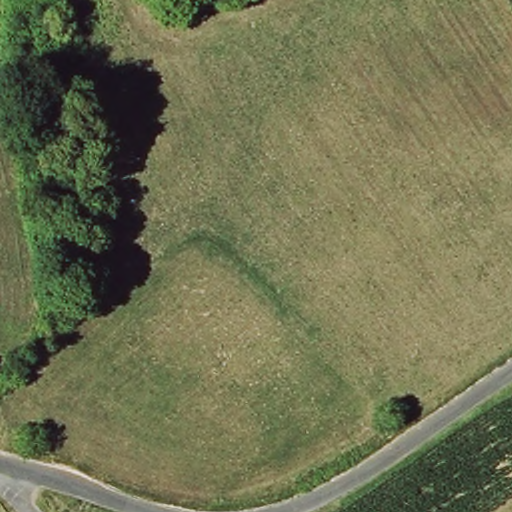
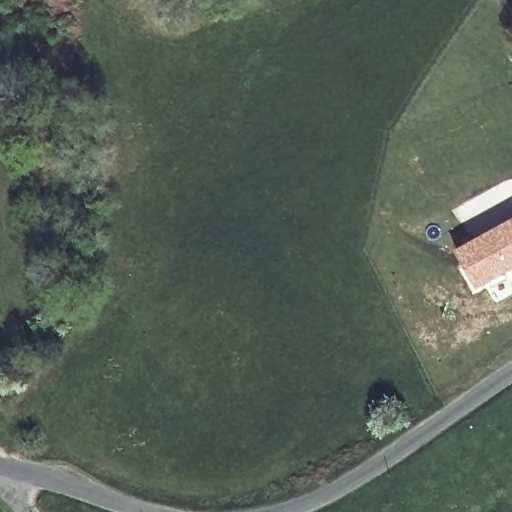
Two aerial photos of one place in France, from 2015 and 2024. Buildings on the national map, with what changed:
new [(477,288),(457,251),(512,220),(512,270),(477,288)]

